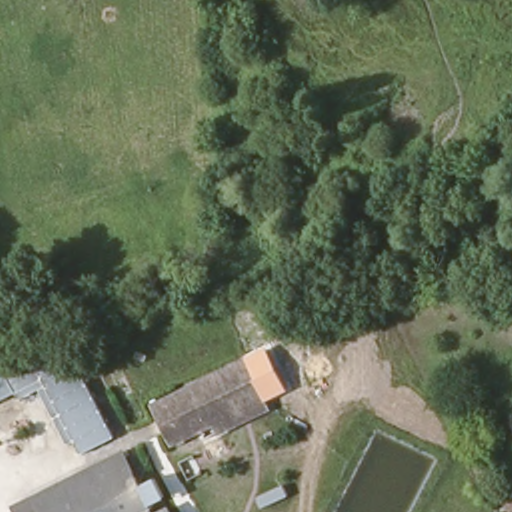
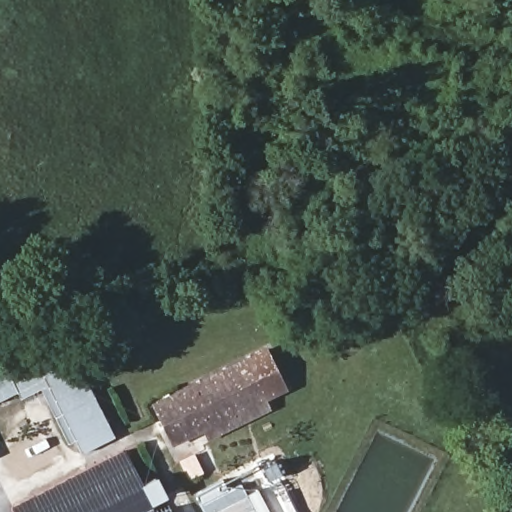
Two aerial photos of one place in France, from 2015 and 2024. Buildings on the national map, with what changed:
unchanged [(26,407),(23,401),(0,413),(0,382),(68,347),(120,445),(87,462),(80,450),(74,453),(45,397),(26,407)]
unchanged [(235,414),(239,420),(222,430),(214,420),(174,442),(155,407),(246,356),(268,394),(235,414)]
unchanged [(125,451),(156,511),(169,504),(173,512),(10,512),(33,500),(125,451)]
new [(224,481),(229,490),(241,484),(247,495),(257,490),(269,512),(204,512),(195,496),(224,481)]

